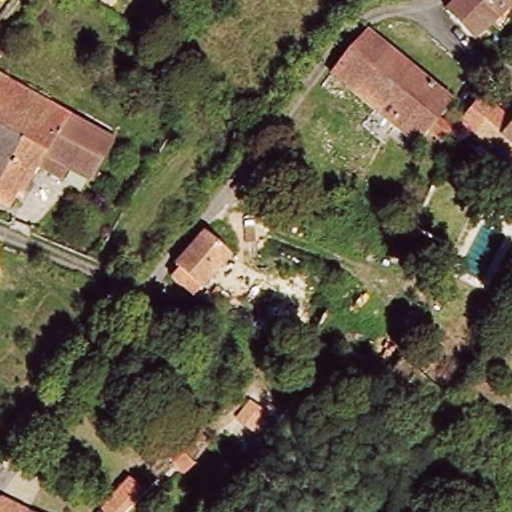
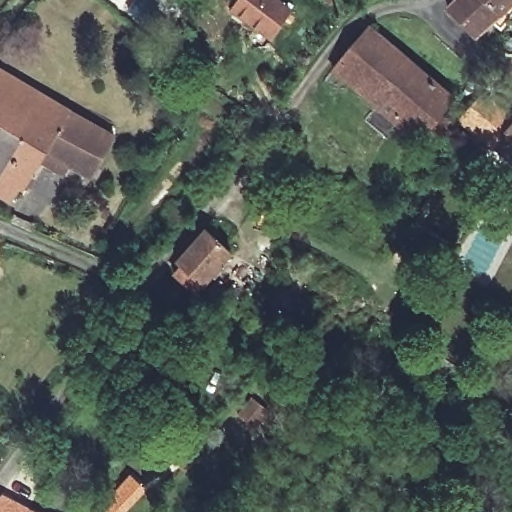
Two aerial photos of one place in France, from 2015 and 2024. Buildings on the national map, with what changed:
new [(238,0),(279,0),(292,10),(270,40),(231,10),(238,0)]
unchanged [(497,11),(482,28),(450,0),(512,0),(512,9),(505,18),(497,11)]
unchanged [(382,40),(347,79),(327,62),(347,39),(362,23),(382,40)]
unchanged [(404,59),(385,85),(372,100),(347,79),(382,40),(404,59)]
unchanged [(427,80),(414,96),(394,119),(372,100),(385,85),(404,59),(427,80)]
unchanged [(53,96),(33,126),(5,166),(0,164),(0,66),(53,96)]
unchanged [(444,94),(438,101),(430,110),(442,121),(432,134),(420,123),(411,133),(394,119),(414,96),(427,80),(444,94)]
unchanged [(42,158),(28,183),(20,180),(14,193),(0,189),(0,177),(2,170),(5,166),(33,126),(53,96),(118,133),(100,168),(73,155),(67,169),(42,158)]
unchanged [(498,132),(486,146),(482,149),(450,127),(472,97),(507,121),(498,132)]
unchanged [(507,121),(512,114),(512,142),(498,132),(507,121)]
unchanged [(170,264),(202,229),(231,250),(221,263),(204,284),(197,290),(176,278),(180,273),(170,264)]
unchanged [(277,388),(266,401),(257,413),(234,397),(255,371),(277,388)]
unchanged [(116,512),(98,512),(106,495),(110,491),(130,470),(142,482),(122,504),(121,503),(119,507),(116,512)]
unchanged [(4,493),(47,512),(0,512),(0,498),(4,493)]

